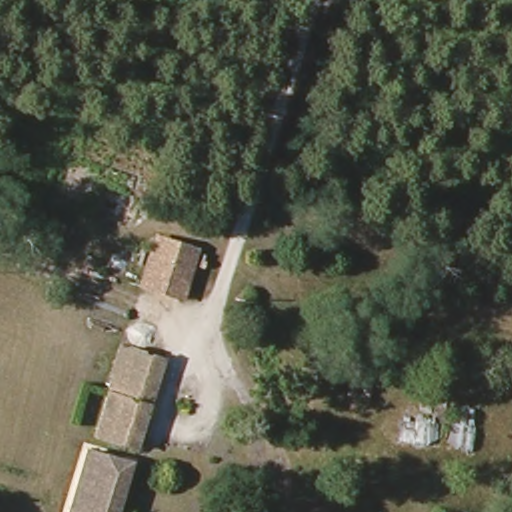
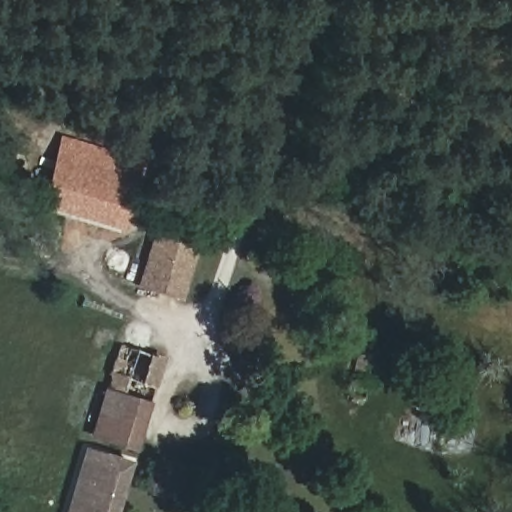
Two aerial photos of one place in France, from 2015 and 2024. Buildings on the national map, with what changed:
new [(149,159),(126,231),(38,207),(60,136),(149,159)]
unchanged [(153,237),(194,250),(178,299),(137,287),(153,237)]
unchanged [(163,366),(153,395),(113,381),(122,352),(163,366)]
unchanged [(356,402),(374,361),(396,370),(378,412),(356,402)]
unchanged [(153,395),(136,448),(95,434),(113,381),(153,395)]
unchanged [(117,512),(71,512),(79,484),(89,453),(130,469),(117,512)]

